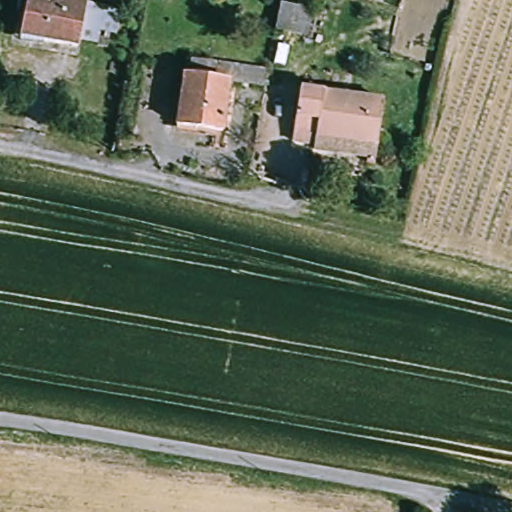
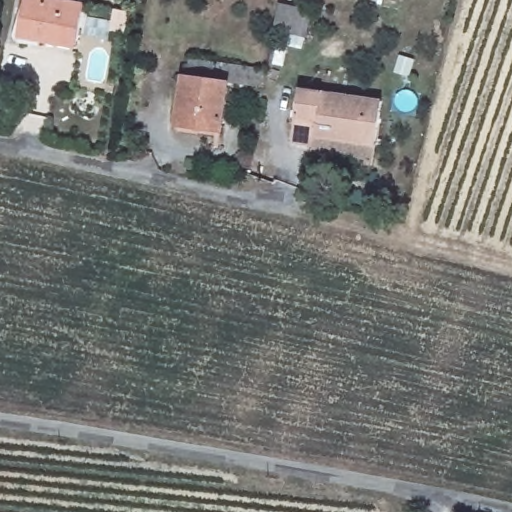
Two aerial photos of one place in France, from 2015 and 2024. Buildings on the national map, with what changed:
unchanged [(25,5),(25,0),(57,0),(86,6),(77,49),(42,42),(18,37),(20,30),(25,5)]
unchanged [(314,11),(309,40),(274,34),(277,20),(280,5),(314,11)]
unchanged [(263,84),(228,80),(222,130),(176,125),(182,75),(211,77),(213,61),(246,65),(266,67),(266,70),(263,84)]
unchanged [(383,104),(371,161),(313,149),(314,144),(288,138),(299,86),(383,104)]

